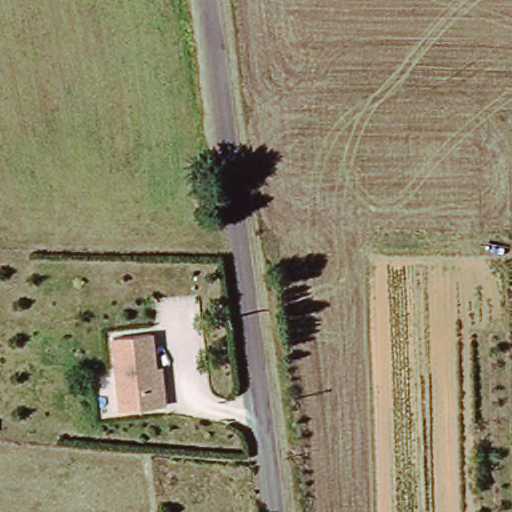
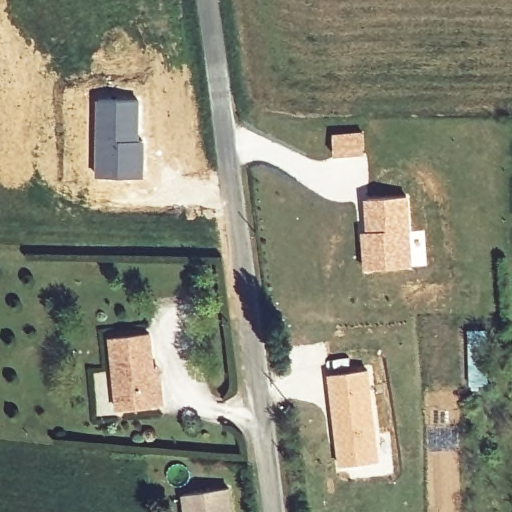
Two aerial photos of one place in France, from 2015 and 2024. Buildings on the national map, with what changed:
new [(96,98),(140,100),(144,178),(95,177),(96,98)]
new [(363,131),(365,154),(333,157),(331,133),(363,131)]
new [(365,230),(363,197),(409,195),(415,267),(362,271),(360,230),(365,230)]
new [(488,328),(490,387),(468,388),(466,329),(488,328)]
unchanged [(112,335),(152,330),(158,384),(163,384),(166,402),(121,407),(112,335)]
new [(331,372),(330,360),(349,356),(351,369),(368,367),(380,462),(337,467),(325,372),(331,372)]
new [(231,489),(234,512),(186,512),(183,495),(231,489)]

